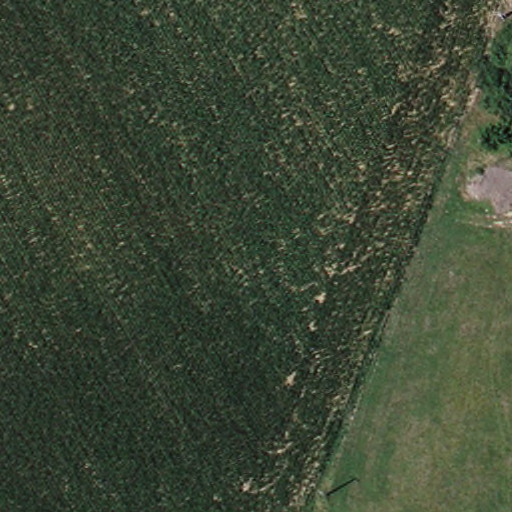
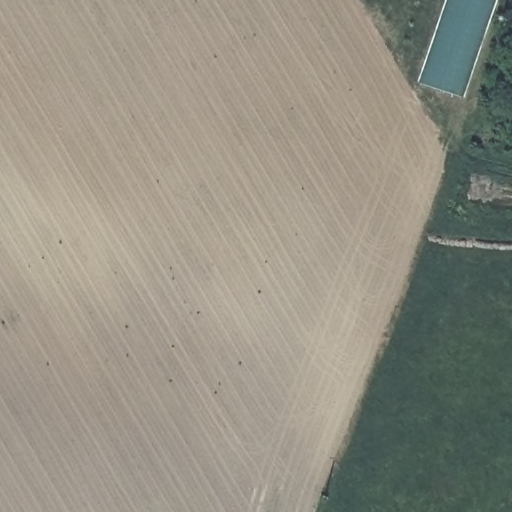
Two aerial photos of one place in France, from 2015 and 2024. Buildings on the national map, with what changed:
new [(447,0),(498,0),(465,98),(419,83),(447,0)]

